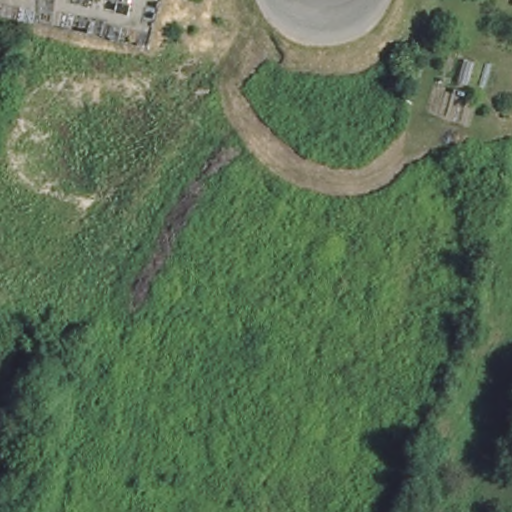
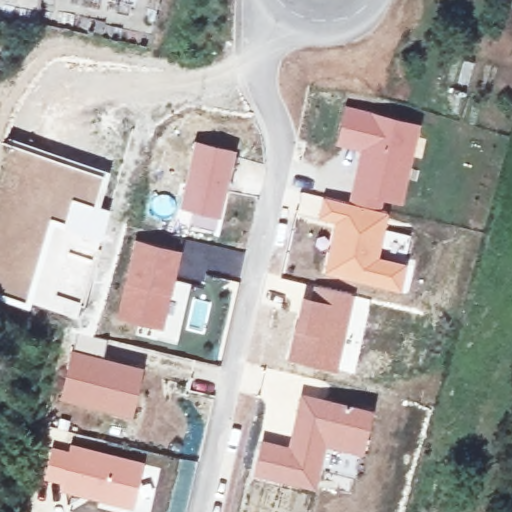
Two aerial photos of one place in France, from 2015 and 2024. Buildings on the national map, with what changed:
new [(345,105),(420,122),(413,162),(403,204),(384,200),(383,208),(348,200),(359,151),(336,145),(345,105)]
new [(195,139),(235,148),(215,229),(189,223),(192,210),(179,207),(195,139)]
new [(6,141),(108,168),(98,201),(70,195),(61,227),(54,225),(29,301),(0,293),(0,165),(6,141)]
new [(302,191),(321,195),(348,200),(383,208),(389,210),(380,255),(406,259),(399,289),(324,272),(334,222),(298,214),(302,191)]
new [(70,195),(98,201),(109,205),(94,256),(66,248),(71,231),(61,227),(70,195)]
new [(54,225),(61,227),(71,231),(66,248),(56,290),(81,297),(76,315),(29,301),(54,225)]
new [(182,248),(185,236),(247,251),(241,279),(208,271),(205,283),(175,276),(182,248)]
new [(134,237),(182,248),(175,276),(165,330),(115,318),(134,237)]
new [(66,248),(94,256),(81,297),(56,290),(66,248)]
new [(303,293),(310,295),(313,283),(357,293),(338,370),(286,358),(303,293)]
new [(77,331),(108,338),(105,356),(142,365),(130,416),(61,401),(77,331)]
new [(262,438),(287,443),(301,391),(372,407),(360,455),(326,447),(315,488),(253,475),(262,438)]
new [(50,445),(68,450),(70,442),(145,460),(134,509),(60,493),(61,483),(43,480),(50,445)]

